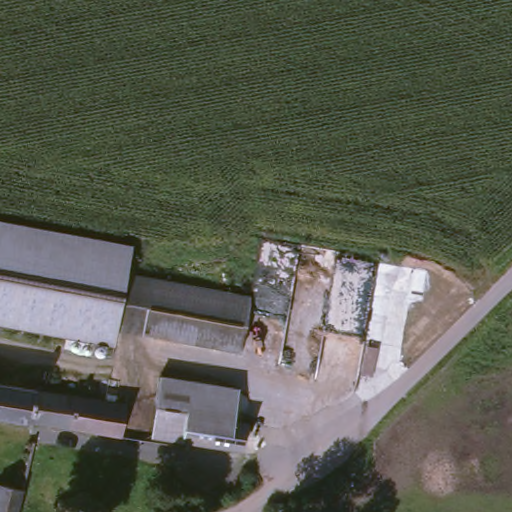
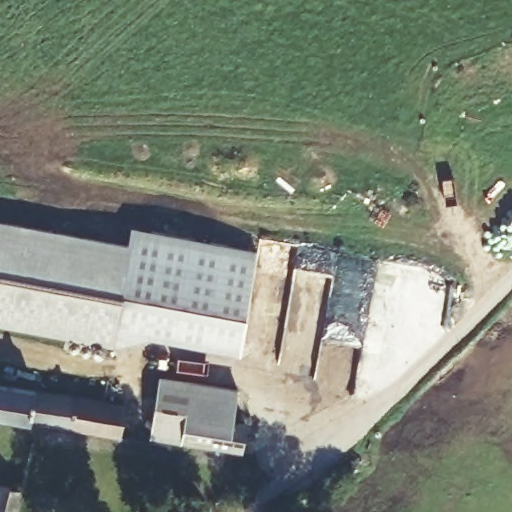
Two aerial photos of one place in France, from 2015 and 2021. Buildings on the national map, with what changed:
new [(130,226),(257,251),(239,355),(147,335),(104,352),(106,344),(118,291),(124,254),(130,226)]
unchanged [(118,291),(106,344),(104,352),(0,330),(0,227),(124,254),(118,291)]
unchanged [(234,400),(225,432),(239,435),(234,457),(144,438),(159,382),(234,400)]
unchanged [(0,391),(106,413),(118,417),(124,419),(115,450),(63,439),(36,433),(0,425),(0,391)]
unchanged [(11,512),(0,512),(0,493),(14,497),(11,512)]

